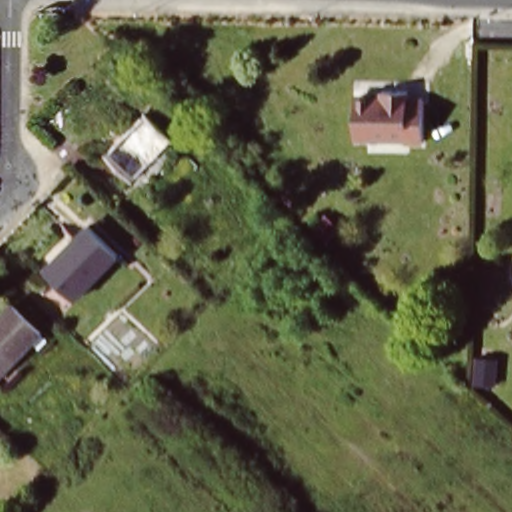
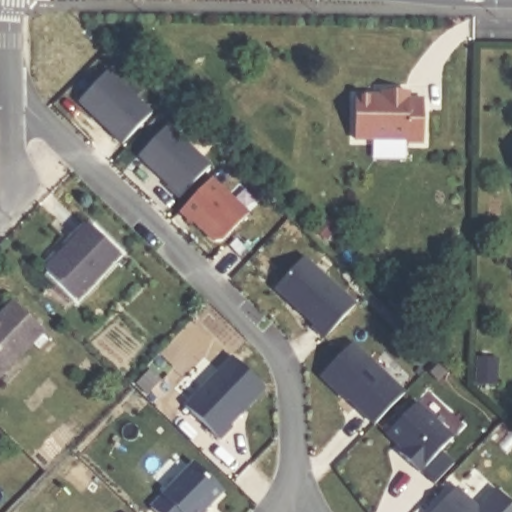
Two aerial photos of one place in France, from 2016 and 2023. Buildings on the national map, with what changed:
new [(121,144),(77,102),(107,69),(152,113),(121,144)]
unchanged [(426,103),(425,145),(358,144),(360,101),(426,103)]
new [(178,198),(165,187),(167,184),(137,156),(167,122),(210,163),(178,198)]
demolished [(118,156),(153,123),(175,146),(141,180),(118,156)]
new [(212,242),(192,223),(190,224),(177,211),(211,175),(247,212),(212,242)]
unchanged [(118,263),(76,304),(48,275),(90,234),(118,263)]
new [(304,258),(356,305),(325,339),(313,327),(315,325),(276,289),(304,258)]
unchanged [(0,372),(0,326),(15,311),(38,334),(0,372)]
new [(373,425),(346,400),(344,402),(319,375),(351,341),(404,390),(373,425)]
new [(478,357),(499,358),(499,384),(478,384),(478,357)]
new [(233,358),(266,389),(230,426),(232,428),(221,440),(186,407),(233,358)]
new [(421,472),(398,451),(401,448),(384,433),(415,401),(452,436),(421,472)]
new [(202,512),(156,512),(149,505),(161,494),(193,460),(223,490),(202,512)]
new [(479,508),(497,489),(512,504),(512,512),(433,512),(457,488),(479,508)]

